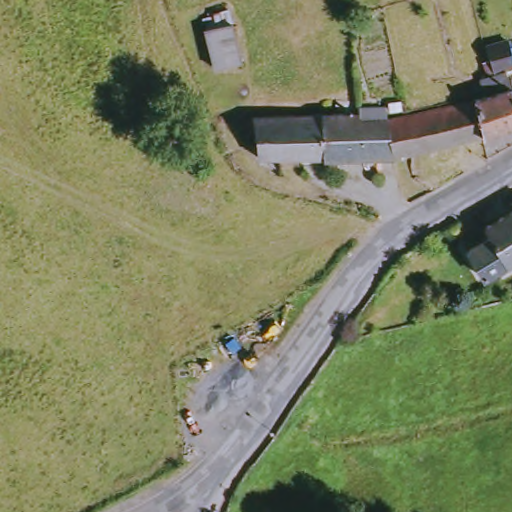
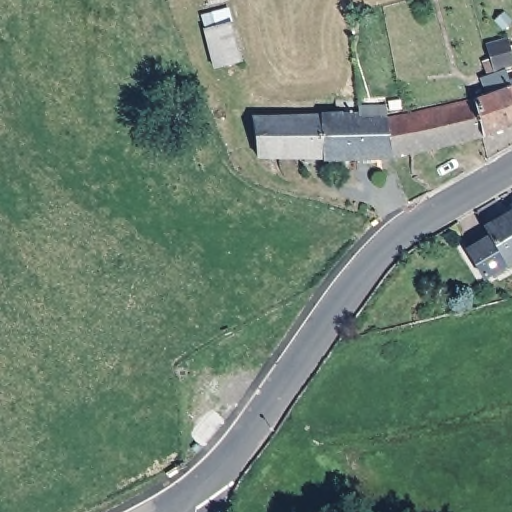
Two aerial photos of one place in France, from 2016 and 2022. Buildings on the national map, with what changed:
unchanged [(215,69),(207,29),(235,23),(242,63),(215,69)]
unchanged [(500,44),(512,40),(512,67),(507,69),(500,44)]
unchanged [(495,94),(490,77),(497,74),(495,64),(502,62),(505,71),(512,69),(512,128),(495,134),(491,135),(484,98),(495,94)]
unchanged [(396,124),(415,118),(462,105),(484,98),(491,135),(402,158),(396,124)]
unchanged [(372,157),(372,114),(373,106),(388,105),(389,117),(396,124),(402,158),(372,157)]
unchanged [(265,156),(265,131),(257,131),(257,114),(338,114),(336,157),(265,156)]
unchanged [(339,166),(339,157),(336,157),(338,114),(372,114),(372,157),(359,157),(358,167),(339,166)]
unchanged [(493,238),(486,227),(512,212),(512,264),(487,280),(470,252),(493,238)]

